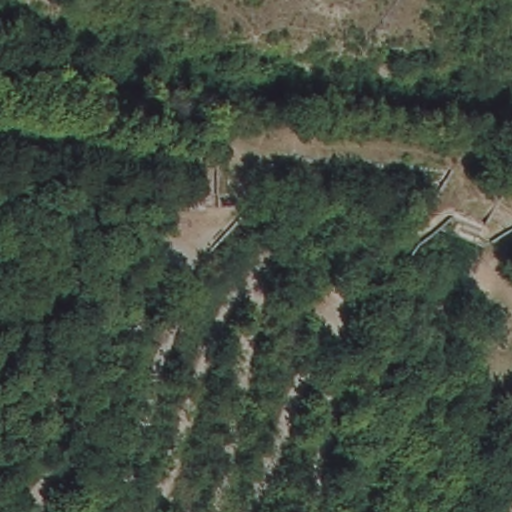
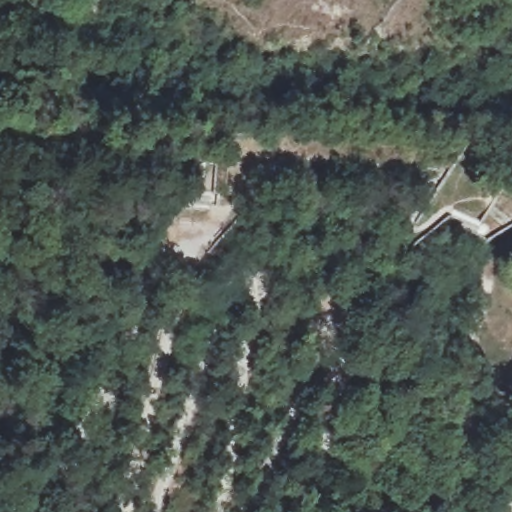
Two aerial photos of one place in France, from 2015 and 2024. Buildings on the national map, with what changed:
[]

